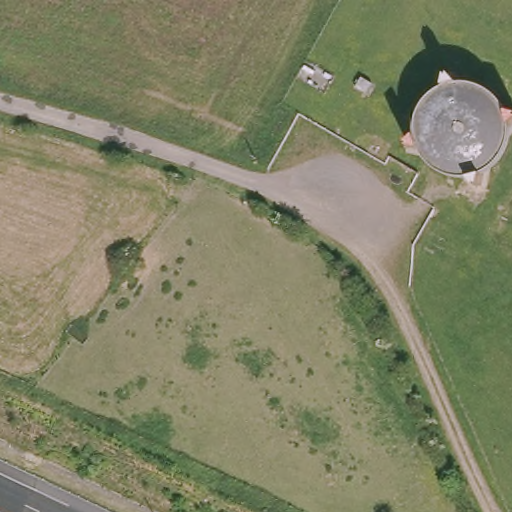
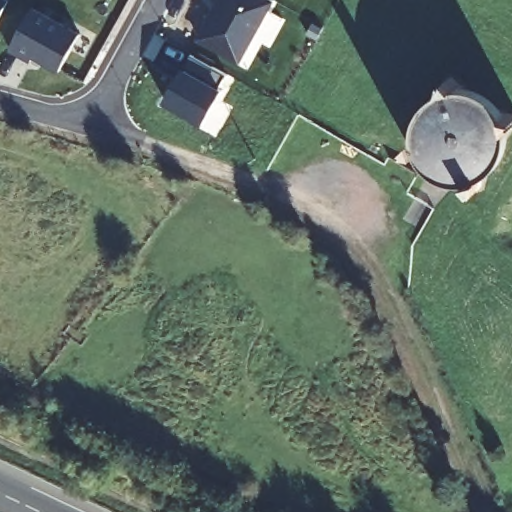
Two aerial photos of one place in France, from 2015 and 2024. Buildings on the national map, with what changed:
new [(9,0),(0,16),(0,0),(9,0)]
new [(198,39),(220,0),(275,0),(240,63),(198,39)]
new [(10,57),(32,14),(80,39),(60,79),(32,64),(30,68),(10,57)]
new [(228,71),(220,85),(224,88),(204,124),(165,101),(185,66),(193,53),(228,71)]

